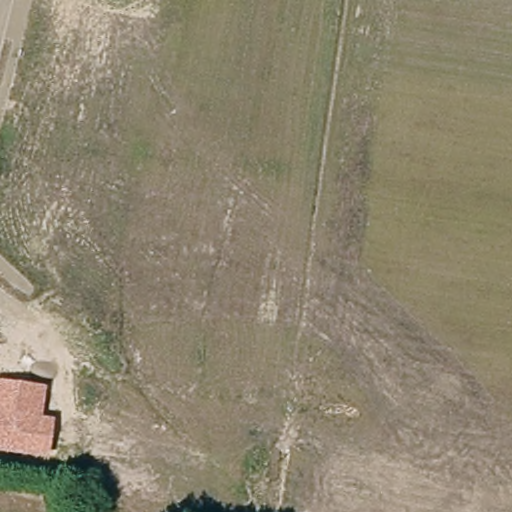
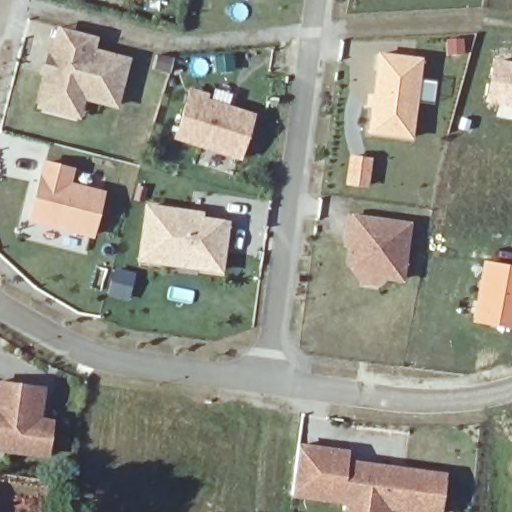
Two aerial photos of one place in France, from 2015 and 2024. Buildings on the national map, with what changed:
new [(84,101),(80,120),(37,107),(43,77),(40,76),(46,52),(51,54),(57,27),(99,38),(96,49),(131,59),(119,109),(84,101)]
new [(369,134),(378,54),(424,58),(413,138),(369,134)]
new [(492,59),(512,63),(512,107),(485,102),(492,59)]
new [(175,140),(190,89),(209,93),(207,99),(255,114),(241,161),(175,140)]
new [(76,169),(72,183),(106,191),(95,239),(29,223),(44,162),(76,169)]
new [(204,212),(204,218),(231,222),(223,275),(137,262),(145,204),(204,212)]
new [(387,280),(378,287),(358,283),(345,262),(349,214),(412,222),(404,282),(387,280)]
new [(483,261),(512,266),(512,330),(472,322),(483,261)]
unchanged [(55,420),(47,459),(0,453),(0,382),(49,387),(42,416),(55,420)]
new [(298,455),(329,460),(325,487),(310,484),(308,497),(348,503),(347,512),(343,512),(291,503),(298,455)]
new [(348,503),(308,497),(310,484),(325,487),(329,460),(347,463),(345,472),(372,476),(388,479),(443,487),(439,512),(347,512),(348,503)]

